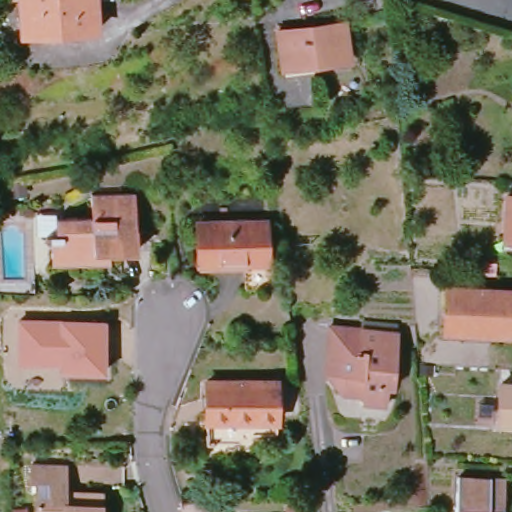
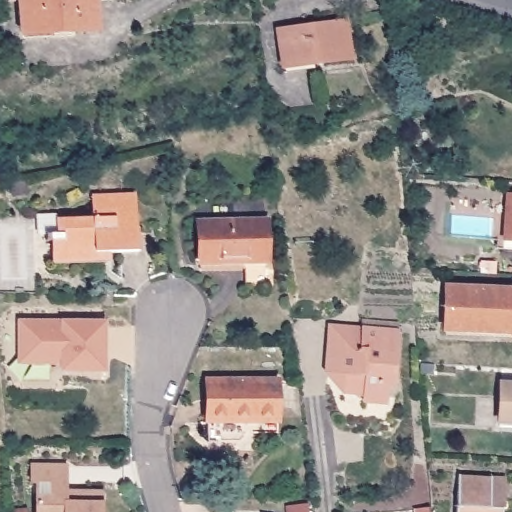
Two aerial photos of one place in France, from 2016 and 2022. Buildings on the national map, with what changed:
unchanged [(22,0),(96,0),(97,30),(23,34),(22,0)]
unchanged [(278,31),(345,21),(350,57),(282,67),(278,31)]
unchanged [(52,241),(46,240),(46,234),(56,234),(56,219),(92,218),(92,195),(135,193),(136,229),(138,229),(139,251),(97,252),(97,257),(52,258),(52,241)]
unchanged [(508,196),(512,196),(512,240),(505,240),(508,196)]
unchanged [(240,262),(196,262),(195,222),(261,221),(262,281),(241,281),(240,262)]
unchanged [(447,286),(512,289),(512,332),(445,330),(447,286)]
unchanged [(63,376),(63,368),(19,367),(20,321),(109,323),(107,375),(63,376)]
unchanged [(392,386),(386,385),(385,402),(360,400),(360,393),(340,392),(341,385),(332,372),(327,372),(329,349),(331,326),(360,328),(397,332),(392,386)]
unchanged [(207,380),(276,380),(276,420),(207,420),(207,380)]
unchanged [(501,383),(512,384),(512,418),(500,417),(501,383)]
unchanged [(51,500),(50,487),(31,489),(30,468),(46,468),(63,467),(67,500),(103,497),(104,512),(39,512),(38,501),(51,500)]
unchanged [(492,478),(492,476),(506,477),(505,508),(503,508),(503,512),(456,512),(459,476),(492,478)]

